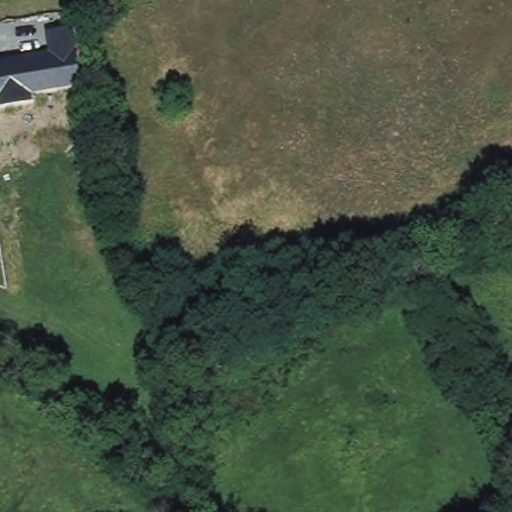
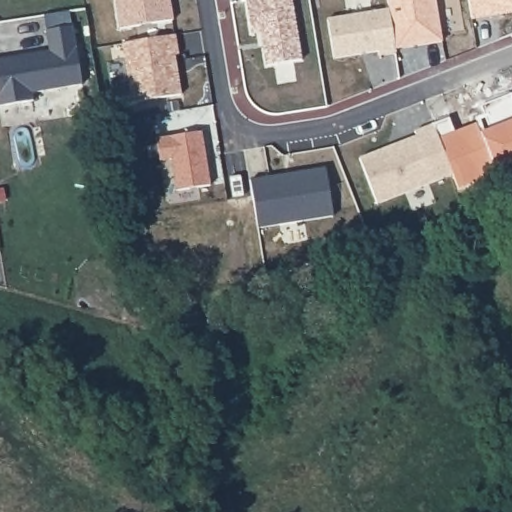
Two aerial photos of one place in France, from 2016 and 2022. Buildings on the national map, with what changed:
new [(170,0),(174,21),(119,29),(115,0),(170,0)]
new [(267,67),(262,34),(252,35),(247,0),(250,0),(292,0),(302,61),(267,67)]
new [(468,0),(512,0),(512,13),(472,19),(468,0)]
new [(327,19),(389,8),(396,48),(333,59),(327,19)]
unchanged [(50,50),(47,31),(74,29),(81,84),(32,93),(33,100),(0,106),(0,60),(50,50)]
new [(123,44),(176,36),(178,55),(174,56),(181,94),(132,101),(123,44)]
new [(358,158),(417,135),(415,131),(433,124),(452,175),(377,205),(358,158)]
new [(210,186),(177,192),(172,159),(160,161),(157,139),(202,133),(210,186)]
new [(333,217),(258,229),(250,180),(326,169),(333,217)]

